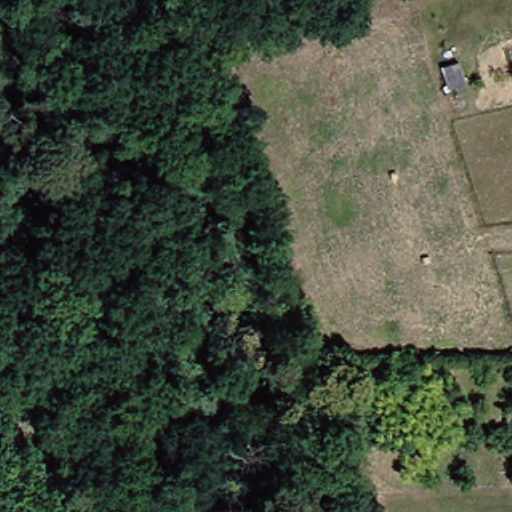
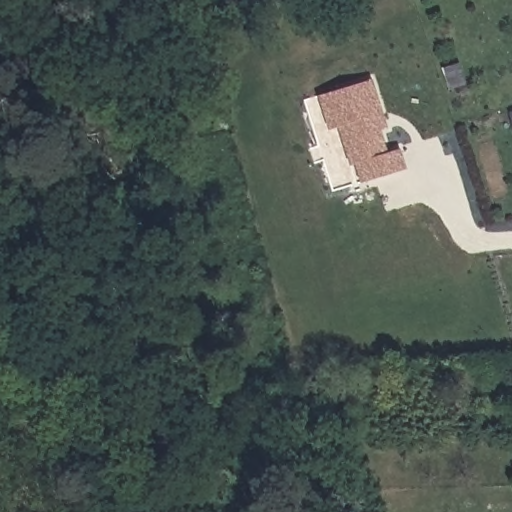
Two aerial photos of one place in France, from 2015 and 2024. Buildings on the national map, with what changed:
new [(329,131),(317,96),(372,79),(388,129),(382,131),(389,152),(400,149),(407,170),(361,185),(354,164),(350,165),(337,128),(329,131)]

